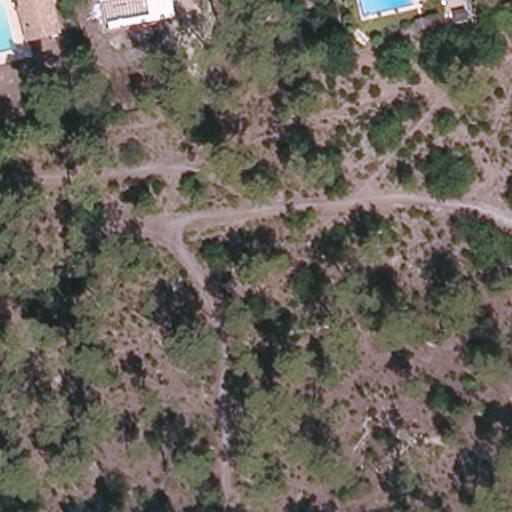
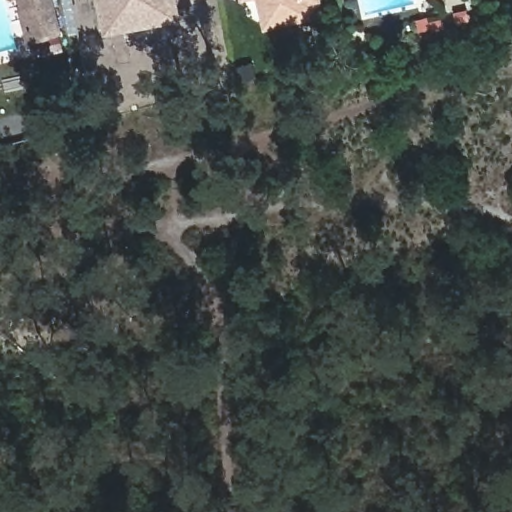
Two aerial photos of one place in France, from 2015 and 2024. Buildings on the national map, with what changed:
unchanged [(60,29),(30,37),(28,28),(22,8),(25,7),(22,0),(51,0),(60,29)]
unchanged [(100,33),(94,0),(179,0),(183,22),(100,33)]
new [(308,2),(311,17),(263,28),(256,0),(318,0),(308,2)]
unchanged [(489,13),(476,17),(474,8),(487,5),(489,13)]
unchanged [(431,27),(418,30),(415,18),(428,15),(431,27)]

